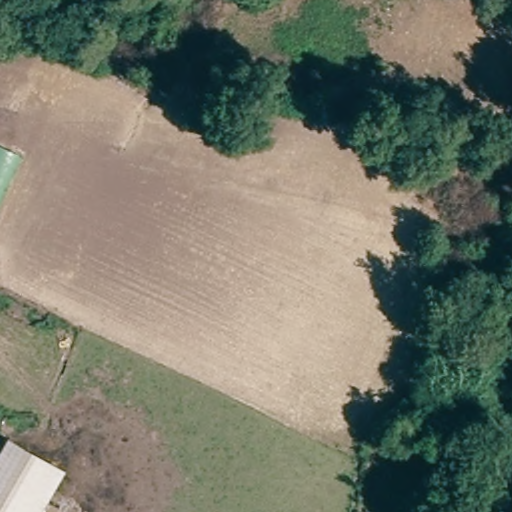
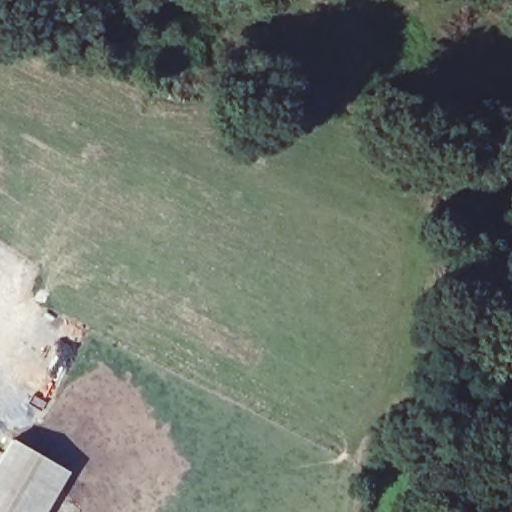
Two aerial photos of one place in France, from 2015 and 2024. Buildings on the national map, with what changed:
demolished [(0,139),(24,151),(0,202),(0,139)]
unchanged [(52,456),(22,512),(0,512),(0,445),(7,432),(52,456)]

